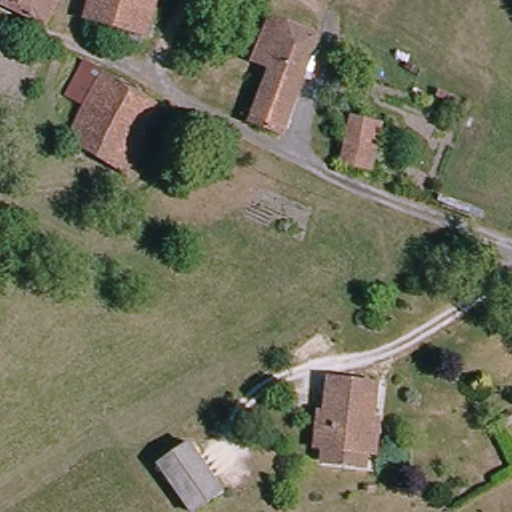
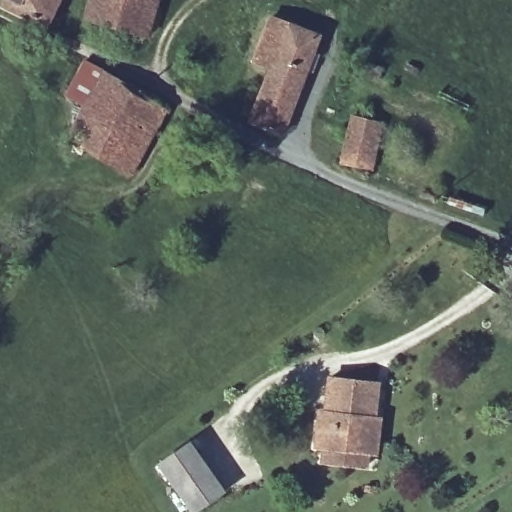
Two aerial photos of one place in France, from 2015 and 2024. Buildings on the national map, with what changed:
unchanged [(50,30),(2,9),(5,0),(63,0),(50,30)]
unchanged [(89,16),(95,0),(160,0),(149,35),(89,16)]
unchanged [(259,62),(276,19),(325,39),(285,136),(254,123),(278,70),(259,62)]
unchanged [(131,175),(69,139),(106,72),(169,108),(131,175)]
unchanged [(388,123),(379,173),(347,167),(355,118),(388,123)]
unchanged [(378,456),(367,455),(364,470),(325,464),(326,450),(318,449),(321,426),(323,413),(330,414),(334,383),(381,390),(376,421),(381,421),(378,456)]
unchanged [(198,512),(167,466),(197,446),(229,495),(204,512),(198,512)]

